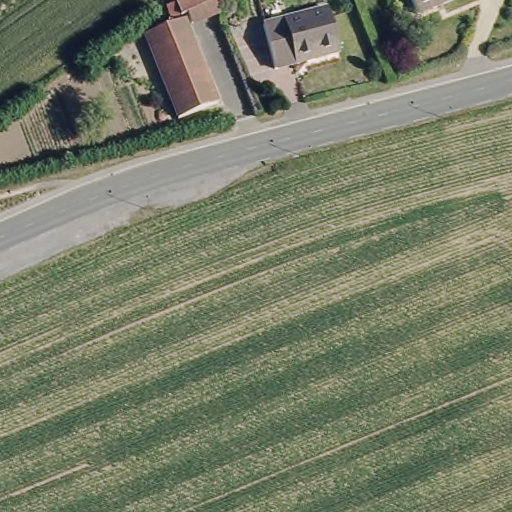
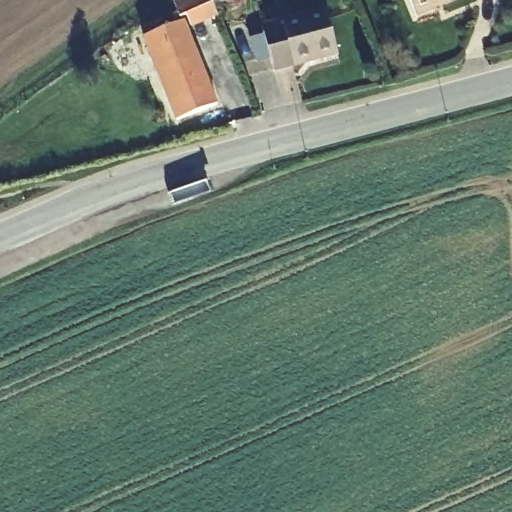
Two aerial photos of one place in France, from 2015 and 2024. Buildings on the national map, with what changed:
unchanged [(215,14),(189,25),(185,15),(179,18),(171,0),(172,0),(210,0),(215,14)]
unchanged [(225,3),(225,0),(237,0),(225,3)]
unchanged [(415,16),(408,0),(452,0),(415,16)]
unchanged [(273,71),(261,25),(324,9),(336,54),(273,71)]
unchanged [(215,105),(175,122),(141,38),(181,22),(215,105)]

